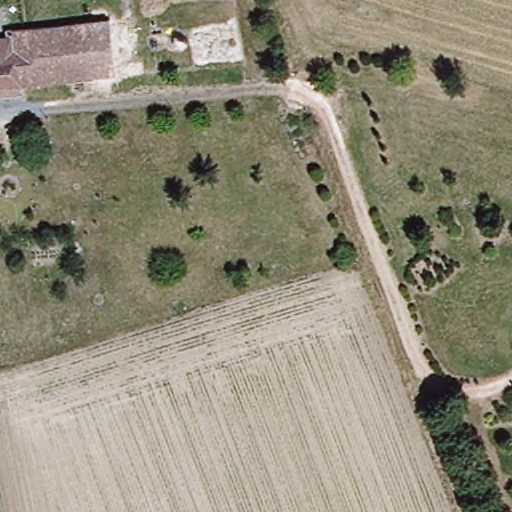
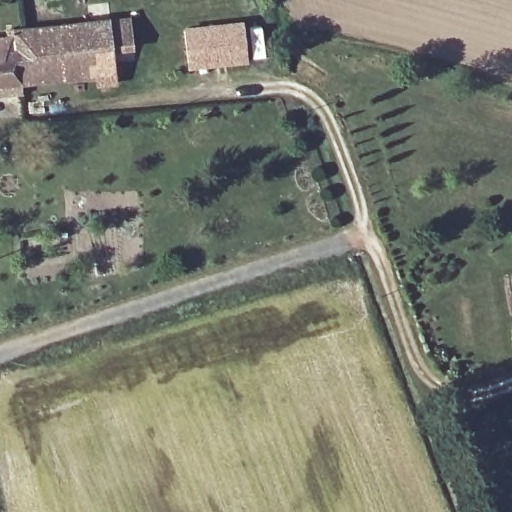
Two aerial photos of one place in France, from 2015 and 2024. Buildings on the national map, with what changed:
new [(244,21),(245,28),(262,25),(266,59),(249,60),(249,64),(188,70),(184,27),(244,21)]
unchanged [(49,55),(64,53),(61,28),(128,24),(130,80),(51,86),(49,55)]
unchanged [(61,28),(64,53),(49,55),(51,86),(0,90),(0,31),(61,28)]

